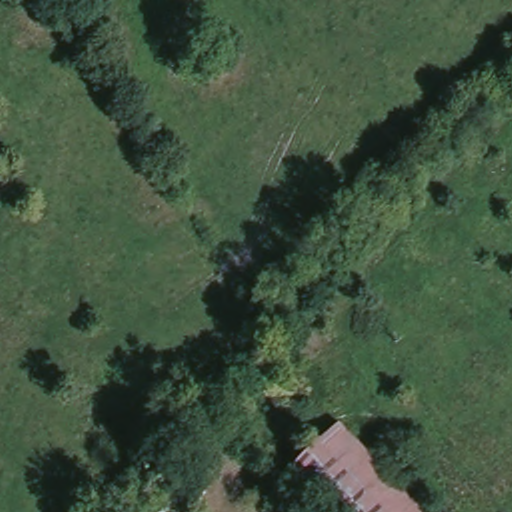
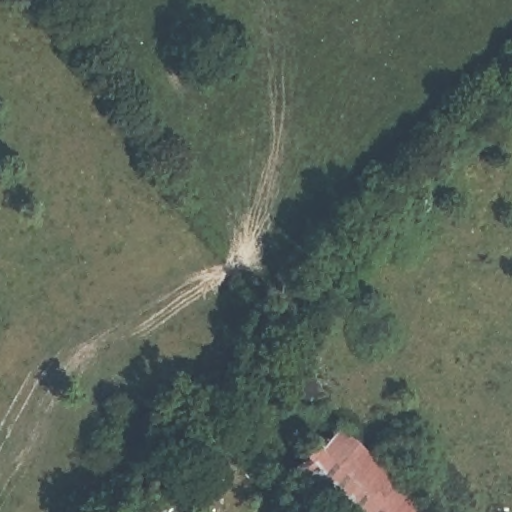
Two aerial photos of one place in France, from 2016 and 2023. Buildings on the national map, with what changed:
unchanged [(340,421),(421,512),(329,512),(290,468),(340,421)]

